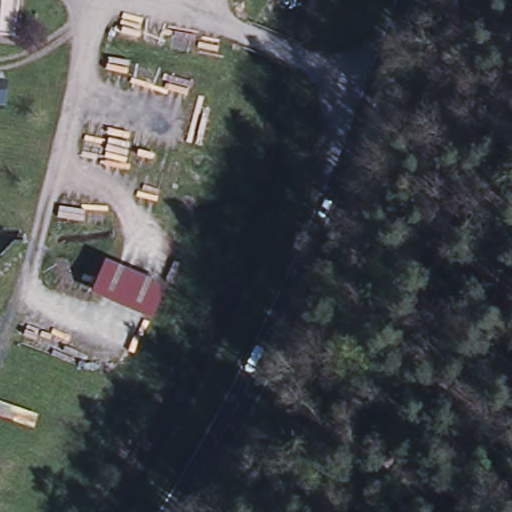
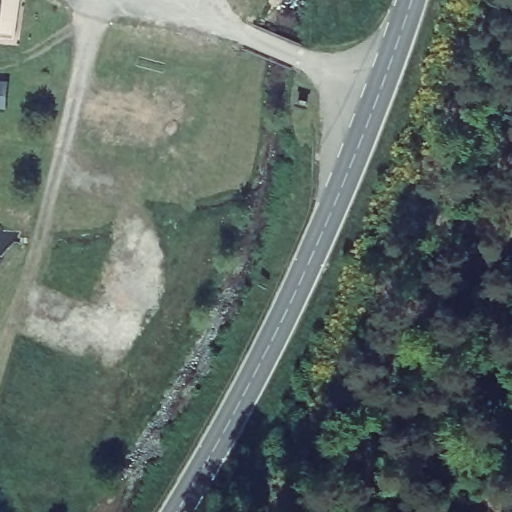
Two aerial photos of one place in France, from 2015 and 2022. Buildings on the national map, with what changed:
unchanged [(17,27),(0,26),(0,0),(18,0),(17,27)]
new [(7,108),(0,108),(0,80),(9,81),(7,108)]
demolished [(107,261),(168,286),(155,325),(93,298),(107,261)]

